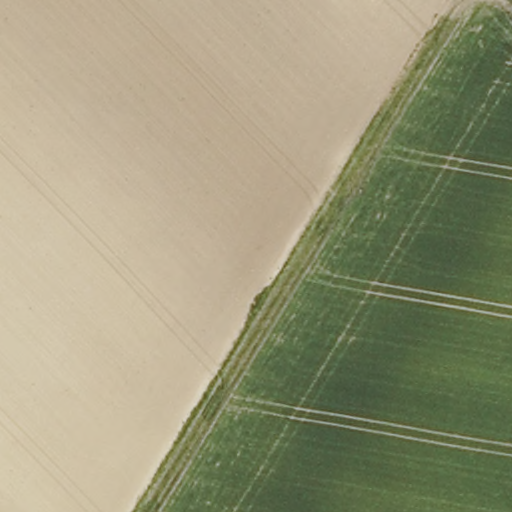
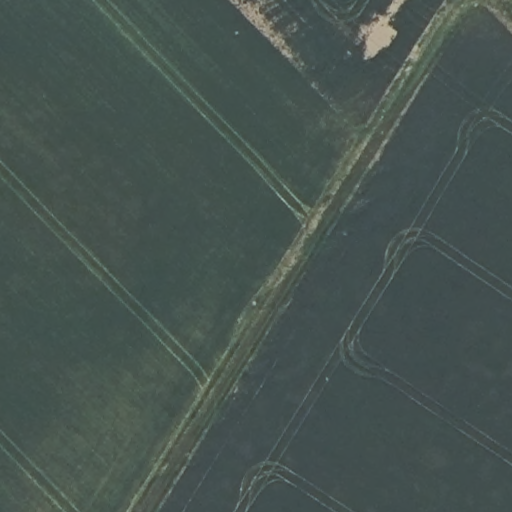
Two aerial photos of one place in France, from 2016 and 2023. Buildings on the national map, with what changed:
[]

